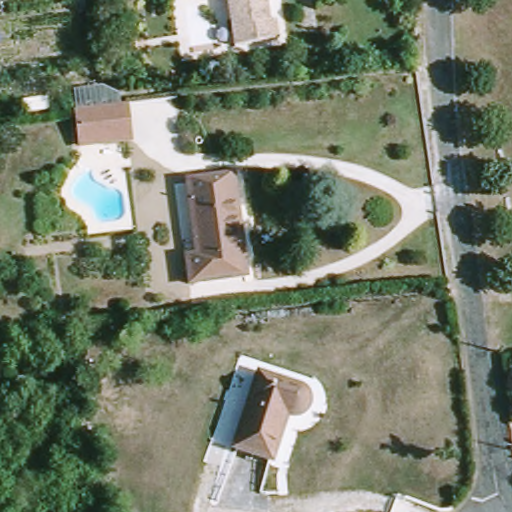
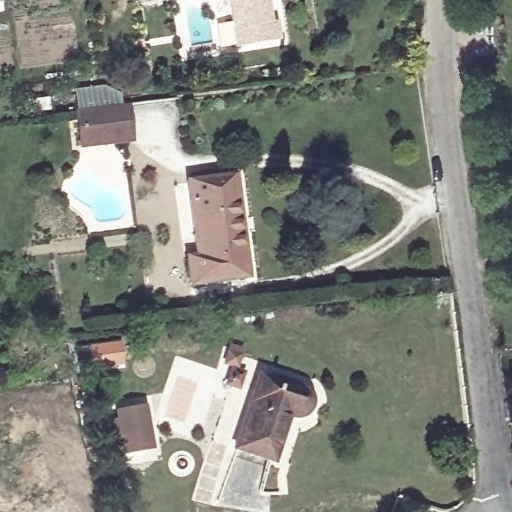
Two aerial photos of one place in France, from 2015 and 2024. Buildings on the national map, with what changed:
unchanged [(123,106),(126,134),(76,139),(74,112),(123,106)]
unchanged [(234,178),(249,280),(191,289),(187,261),(198,259),(188,185),(234,178)]
unchanged [(282,382),(299,388),(303,390),(304,393),(305,397),(306,401),(305,405),(304,409),(300,412),(298,413),(294,415),(290,415),(286,415),(271,460),(234,447),(258,375),(282,382)]
new [(154,450),(120,456),(119,448),(106,450),(104,422),(114,419),(113,412),(145,405),(154,450)]

